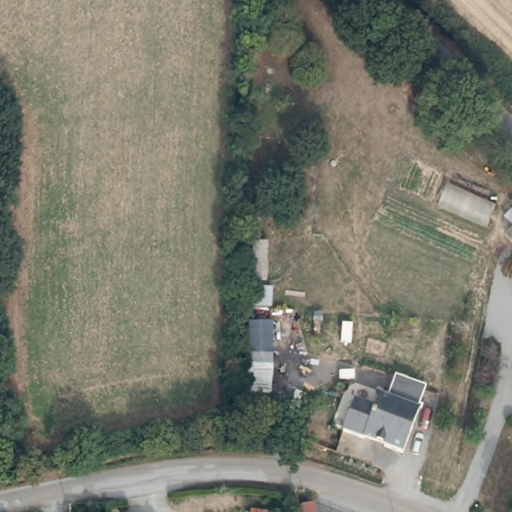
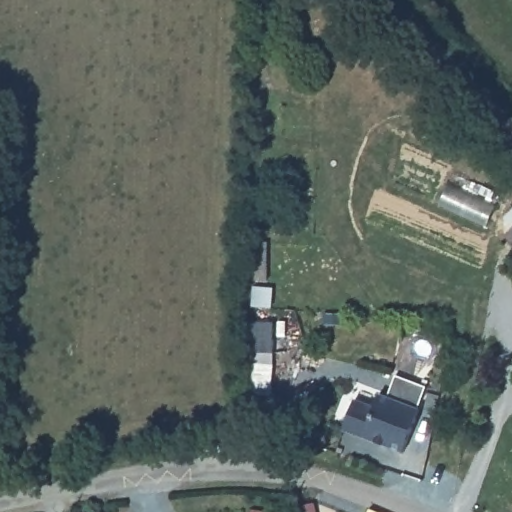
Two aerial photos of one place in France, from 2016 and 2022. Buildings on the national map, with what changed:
unchanged [(512,222),(512,237),(505,229),(512,222)]
unchanged [(246,279),(248,246),(266,248),(265,280),(246,279)]
unchanged [(270,294),(265,358),(249,356),(253,314),(250,314),(251,292),(270,294)]
unchanged [(351,404),(371,412),(376,399),(385,402),(393,379),(423,391),(415,413),(416,413),(400,457),(381,449),(382,448),(362,440),(361,442),(340,434),(351,404)]
unchanged [(246,511),(251,512),(246,512),(246,511)]

